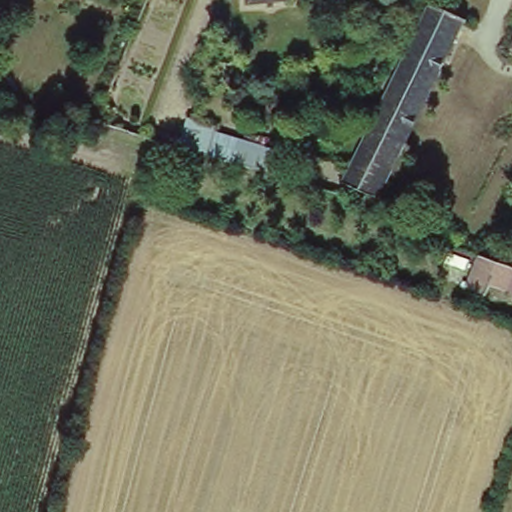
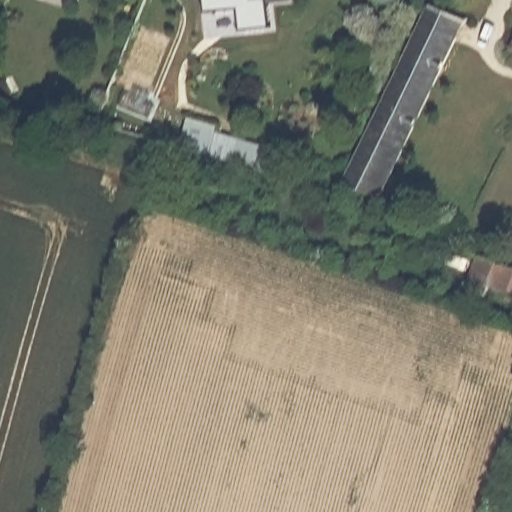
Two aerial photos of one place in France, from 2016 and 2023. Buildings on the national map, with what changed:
new [(240,28),(239,8),(206,10),(205,0),(267,0),(268,26),(240,28)]
unchanged [(462,21),(413,124),(376,200),(343,185),(356,156),(385,94),(429,4),(462,21)]
unchanged [(190,113),(221,124),(219,131),(270,149),(261,174),(210,155),(176,145),(190,113)]
unchanged [(511,287),(510,289),(491,284),(487,294),(469,287),(479,257),(479,254),(512,265),(512,287),(511,287)]

